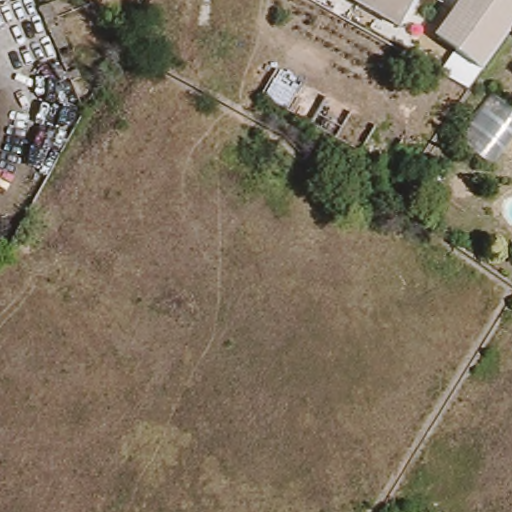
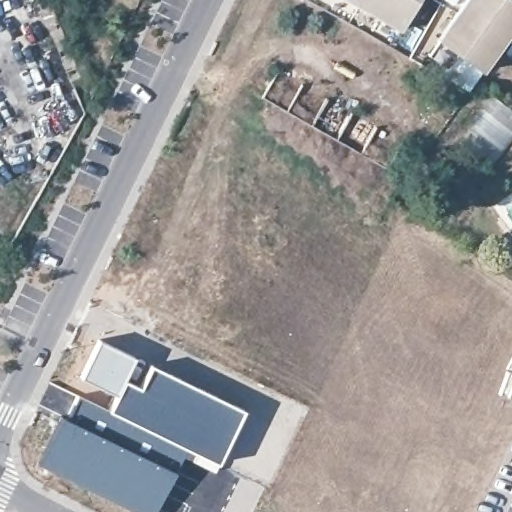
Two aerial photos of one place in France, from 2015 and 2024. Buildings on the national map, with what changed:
unchanged [(352,0),(426,0),(405,33),(352,0)]
unchanged [(463,0),(512,0),(512,25),(482,66),(438,35),(463,0)]
new [(52,5),(82,79),(72,83),(42,9),(52,5)]
unchanged [(495,93),(512,106),(512,136),(490,164),(457,140),(495,93)]
new [(98,337),(138,355),(114,394),(79,377),(98,337)]
new [(114,394),(138,355),(147,360),(177,373),(247,409),(216,473),(184,456),(186,451),(107,408),(114,394)]
new [(37,405),(49,381),(75,393),(107,408),(186,451),(184,456),(177,470),(155,512),(134,512),(80,488),(36,465),(60,415),(37,405)]

